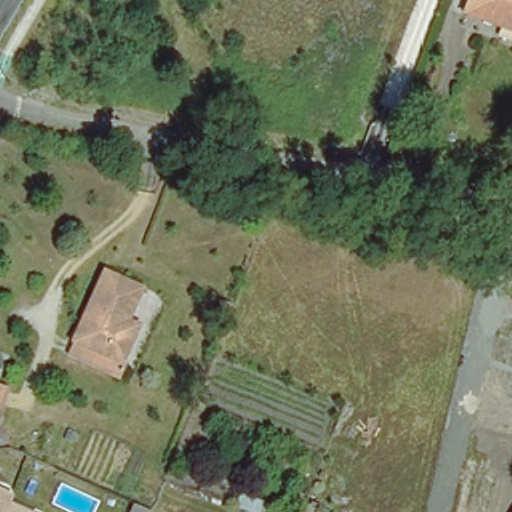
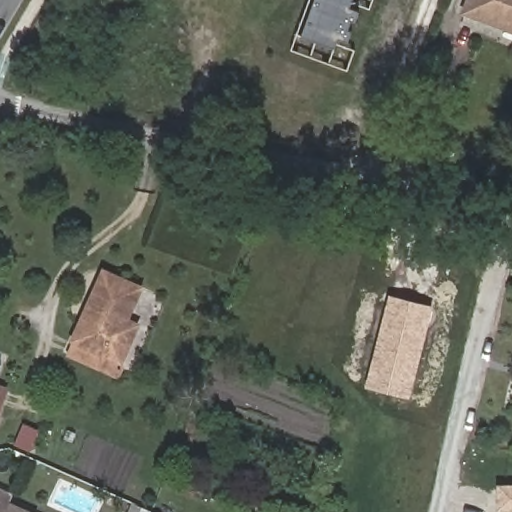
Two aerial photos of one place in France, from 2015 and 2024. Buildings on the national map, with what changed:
new [(312,0),(351,0),(348,8),(358,11),(353,23),(351,22),(348,30),(351,32),(346,43),(337,40),(333,49),(299,36),(312,0)]
unchanged [(512,30),(464,13),(469,0),(512,0),(512,30)]
unchanged [(68,348),(73,337),(105,265),(145,282),(131,313),(142,319),(126,359),(121,371),(68,348)]
new [(365,387),(388,295),(432,307),(410,399),(365,387)]
unchanged [(7,389),(1,408),(0,409),(0,386),(7,389)]
new [(496,511),(497,486),(512,486),(512,512),(506,512),(507,511),(496,511)]
unchanged [(10,496),(6,505),(23,512),(0,512),(0,492),(10,496)]
new [(152,512),(127,512),(131,503),(152,512)]

